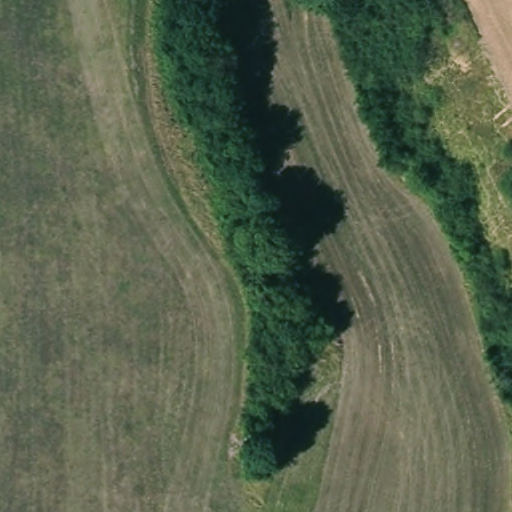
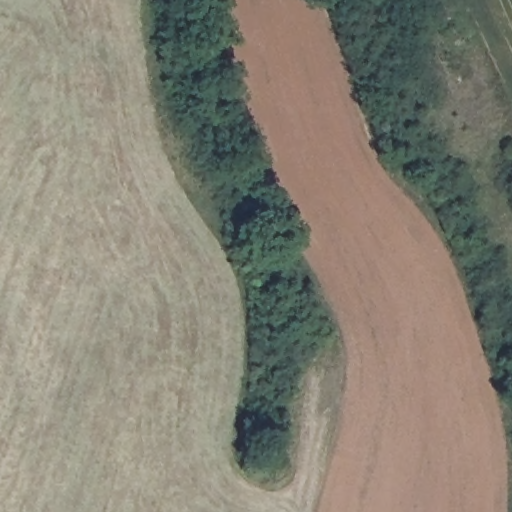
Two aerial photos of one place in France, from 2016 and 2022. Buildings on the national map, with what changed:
[]

